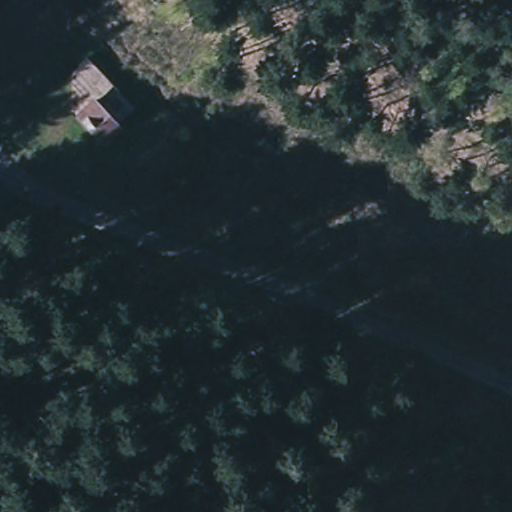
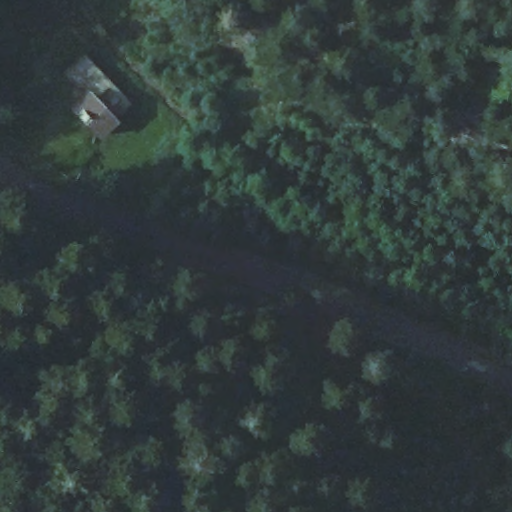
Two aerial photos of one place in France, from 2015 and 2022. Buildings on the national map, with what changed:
unchanged [(130,104),(113,118),(120,124),(101,143),(69,111),(84,98),(62,75),(85,55),(130,104)]

